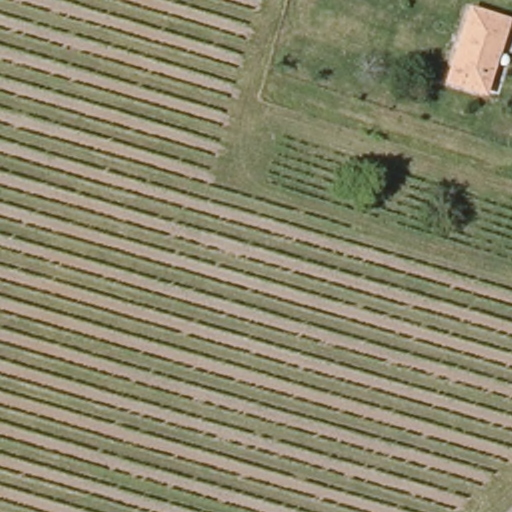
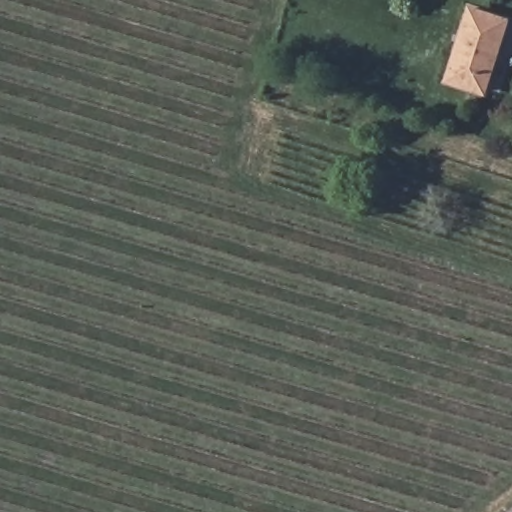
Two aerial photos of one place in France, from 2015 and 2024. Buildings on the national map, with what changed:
unchanged [(485,96),(440,81),(462,0),(467,0),(510,16),(485,96)]

